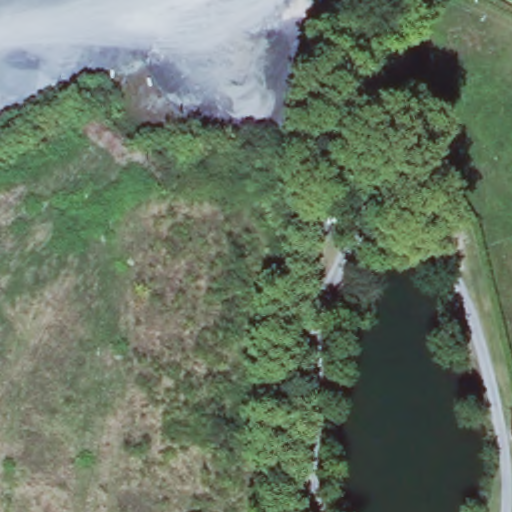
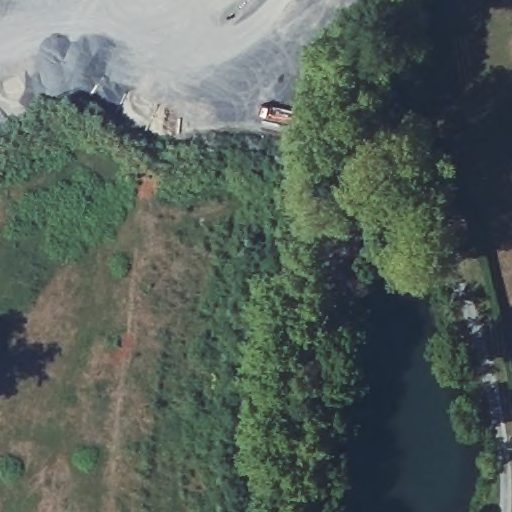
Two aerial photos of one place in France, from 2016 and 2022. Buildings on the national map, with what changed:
unchanged [(403,103),(431,145),(406,159),(382,117),(403,103)]

